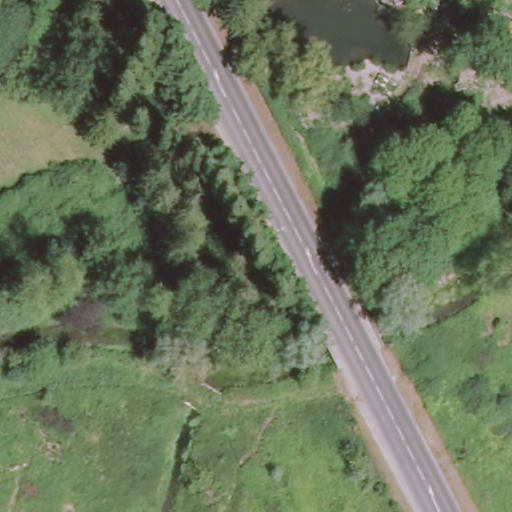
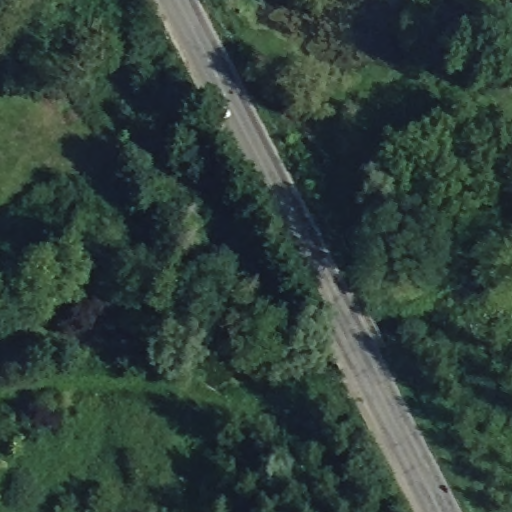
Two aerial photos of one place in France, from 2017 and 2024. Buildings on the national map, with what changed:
unchanged [(459,9),(457,20),(442,18),(444,7),(459,9)]

